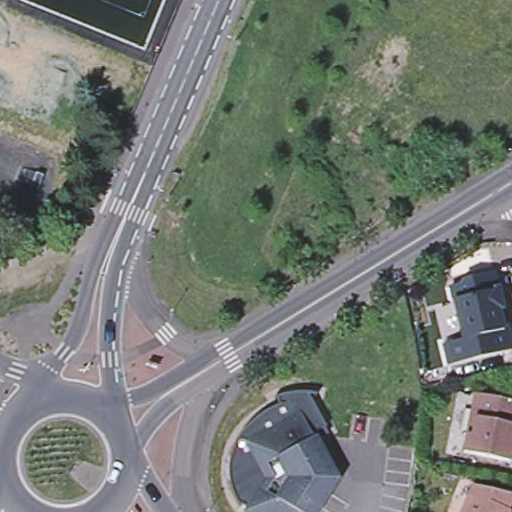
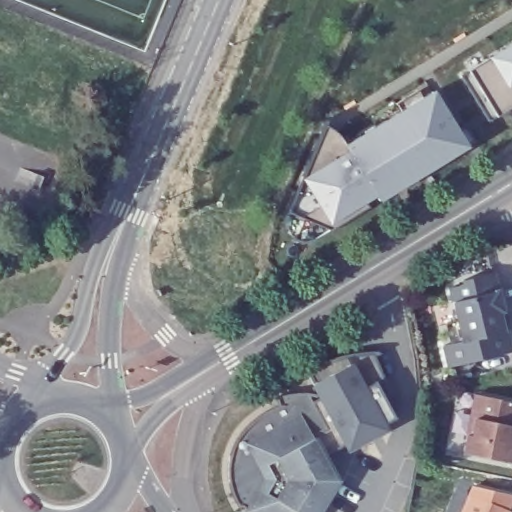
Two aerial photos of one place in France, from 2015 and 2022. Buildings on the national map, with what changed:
new [(460,76),(512,45),(512,108),(488,123),(460,76)]
new [(303,244),(295,241),(304,221),(287,214),(297,190),(302,178),(318,139),(326,121),(328,122),(326,127),(336,134),(340,138),(346,146),(359,139),(357,135),(373,125),(375,129),(401,113),(396,105),(418,91),(423,99),(433,93),(457,131),(466,126),(476,142),(467,148),(405,186),(390,195),(378,202),(375,196),(365,202),(368,209),(330,232),(315,241),(310,244),(303,244)]
unchanged [(510,349),(447,365),(442,343),(461,338),(448,286),(462,282),(461,278),(491,270),(500,307),(505,327),(510,349)]
new [(301,425),(250,450),(268,486),(253,512),(240,512),(240,511),(232,497),(230,487),(228,470),(230,456),(235,442),(246,427),(260,416),(271,410),(277,407),(273,398),(286,395),(300,394),(310,395),(318,397),(311,385),(302,367),(325,360),(353,355),(377,355),(392,395),(386,397),(395,418),(385,423),(388,431),(347,451),(344,444),(320,457),(301,425)]
unchanged [(512,399),(512,434),(510,440),(512,441),(512,455),(511,460),(463,450),(476,391),(512,399)]
unchanged [(301,425),(332,479),(332,495),(322,512),(253,512),(268,486),(250,450),(301,425)]
unchanged [(471,493),(474,486),(512,495),(512,502),(508,510),(510,511),(510,512),(463,512),(471,493)]

